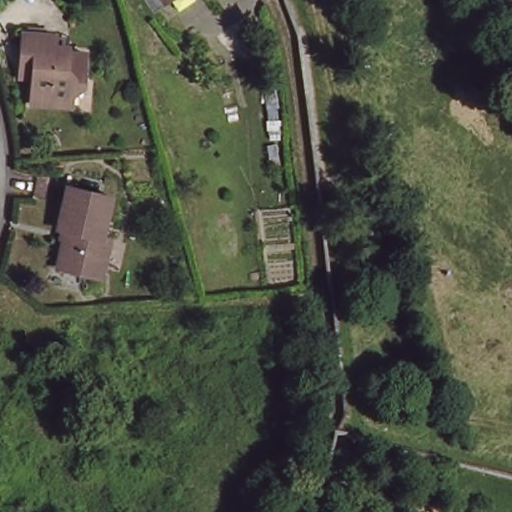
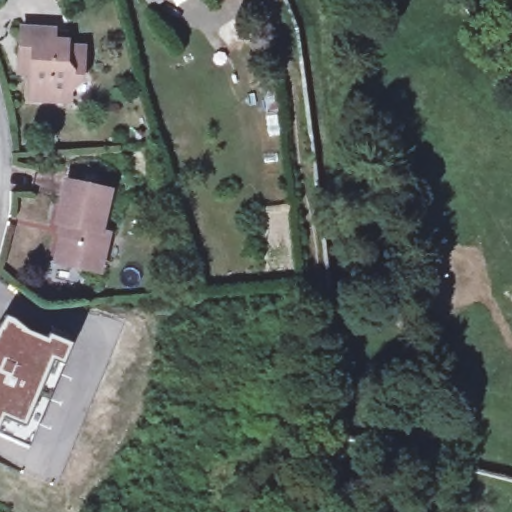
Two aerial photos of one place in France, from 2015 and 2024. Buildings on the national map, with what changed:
unchanged [(159,2),(158,0),(163,0),(159,2)]
unchanged [(18,68),(21,33),(53,35),(52,45),(68,46),(67,53),(83,55),(81,79),(70,78),(68,109),(28,105),(29,79),(18,78),(18,68)]
unchanged [(105,196),(96,235),(104,237),(95,276),(52,266),(60,228),(53,227),(62,186),(105,196)]
new [(3,324),(9,315),(16,318),(31,330),(49,338),(51,333),(75,343),(32,447),(0,433),(0,332),(3,324)]
demolished [(65,359),(64,381),(58,381),(58,396),(41,395),(43,378),(46,358),(65,359)]

